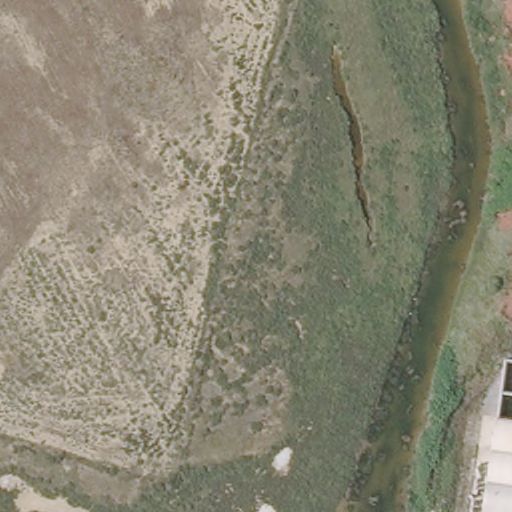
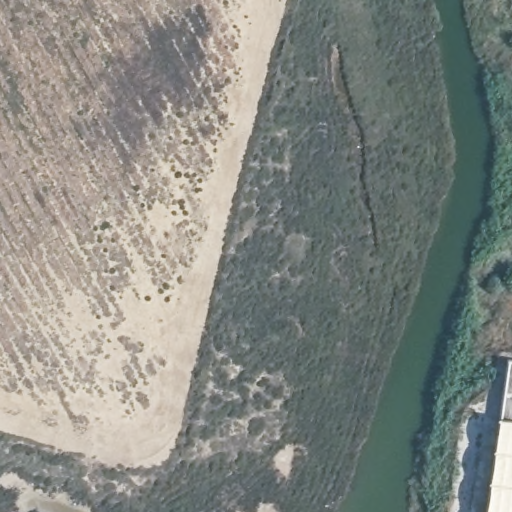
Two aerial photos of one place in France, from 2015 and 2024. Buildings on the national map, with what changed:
unchanged [(512,424),(512,512),(483,512),(496,422),(512,424)]

